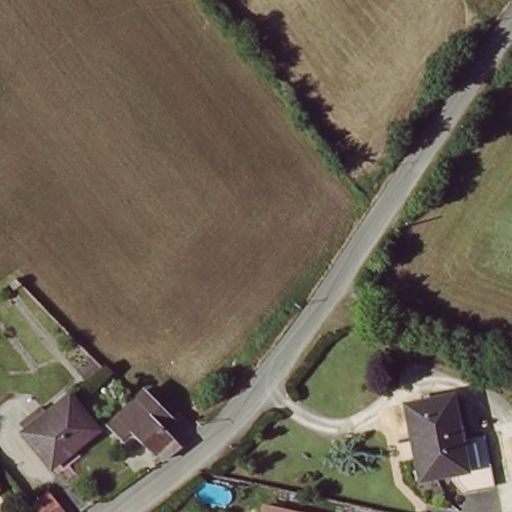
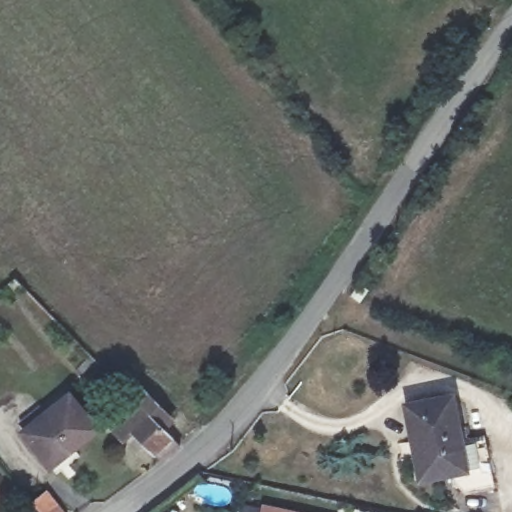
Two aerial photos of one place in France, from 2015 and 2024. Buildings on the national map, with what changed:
unchanged [(376,287),(370,299),(357,294),(364,283),(376,287)]
unchanged [(473,487),(457,479),(454,467),(420,474),(402,404),(447,396),(455,435),(481,429),(493,481),(473,487)]
unchanged [(48,467),(24,436),(73,399),(96,432),(48,467)]
unchanged [(149,472),(121,441),(112,447),(96,432),(130,408),(140,401),(169,429),(159,437),(175,453),(149,472)]
unchanged [(35,508),(47,499),(57,512),(38,512),(35,508)]
unchanged [(262,502),(306,512),(260,512),(262,502)]

